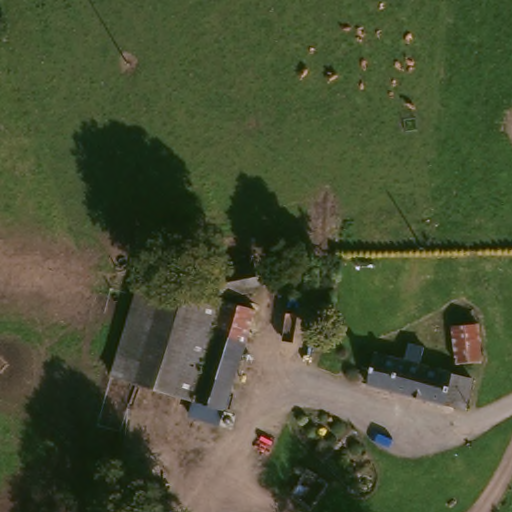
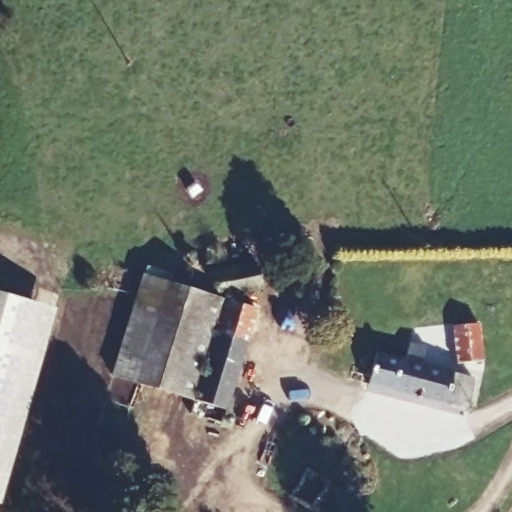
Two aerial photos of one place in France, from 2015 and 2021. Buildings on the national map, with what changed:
unchanged [(264,268),(266,290),(219,295),(213,269),(263,256),(264,268)]
unchanged [(191,397),(184,395),(116,368),(108,365),(143,272),(144,270),(226,301),(191,397)]
unchanged [(191,397),(226,301),(257,313),(214,423),(178,411),(184,395),(191,397)]
new [(0,497),(0,305),(51,318),(0,497)]
unchanged [(474,324),(482,359),(458,363),(452,328),(474,324)]
unchanged [(364,384),(371,355),(399,362),(403,348),(420,352),(417,365),(469,377),(460,405),(364,384)]
demolished [(288,512),(262,512),(259,511),(273,483),(296,493),(288,512)]

